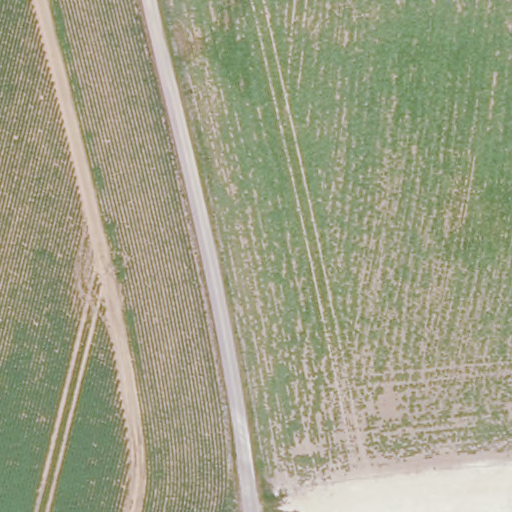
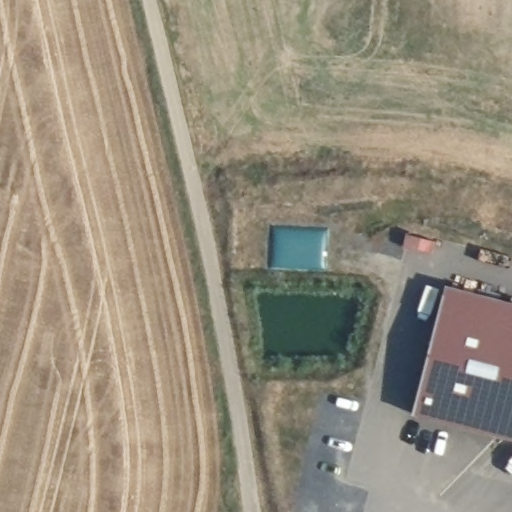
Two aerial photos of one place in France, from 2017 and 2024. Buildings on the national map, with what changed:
new [(412,414),(445,284),(512,301),(512,438),(412,414)]

